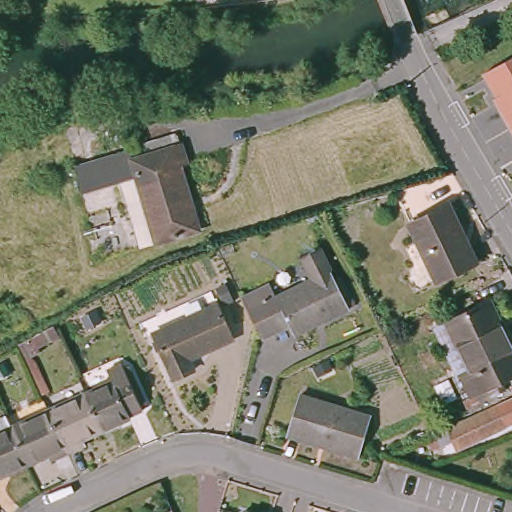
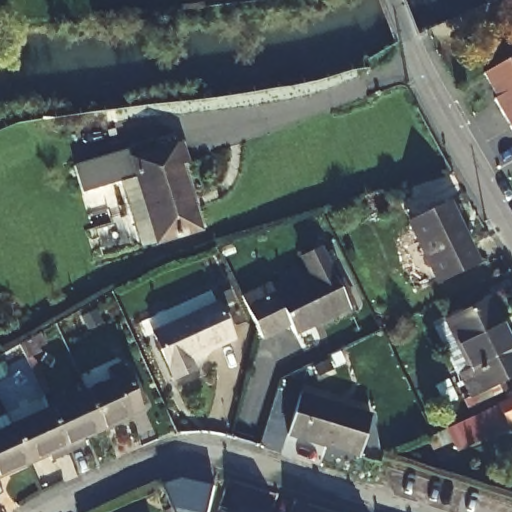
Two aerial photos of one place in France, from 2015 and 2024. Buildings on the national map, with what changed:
unchanged [(482,74),(512,56),(512,125),(482,74)]
unchanged [(71,175),(175,144),(180,164),(172,165),(192,232),(134,249),(115,183),(77,194),(71,175)]
unchanged [(439,286),(410,227),(450,209),(478,267),(439,286)]
unchanged [(267,282),(275,295),(310,279),(300,258),(318,249),(347,308),(293,334),(288,324),(261,338),(258,331),(242,294),(267,282)]
unchanged [(468,397),(458,374),(436,327),(448,321),(492,299),(512,343),(512,377),(502,381),(506,389),(490,396),(472,404),(468,397)]
unchanged [(231,342),(187,363),(192,376),(173,384),(152,338),(216,309),(231,342)]
unchanged [(37,359),(25,365),(17,349),(29,342),(37,359)]
unchanged [(105,382),(101,373),(117,366),(137,409),(125,415),(126,418),(98,430),(82,394),(105,382)]
unchanged [(437,409),(428,389),(442,383),(451,403),(437,409)]
unchanged [(82,394),(98,430),(79,439),(82,445),(62,454),(43,412),(82,394)]
unchanged [(453,451),(448,442),(423,455),(417,442),(512,397),(512,423),(453,451)]
unchanged [(370,419),(357,460),(285,442),(297,400),(370,419)]
unchanged [(62,454),(45,462),(41,456),(20,464),(5,429),(43,412),(62,454)]
unchanged [(0,432),(5,429),(20,464),(0,474),(0,432)]
new [(165,488),(178,482),(215,487),(207,512),(175,512),(165,488)]

